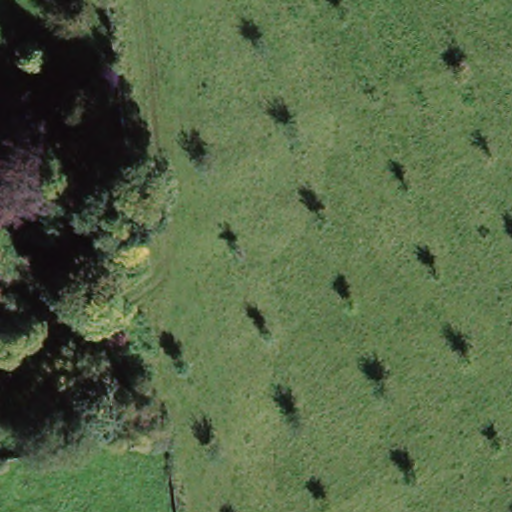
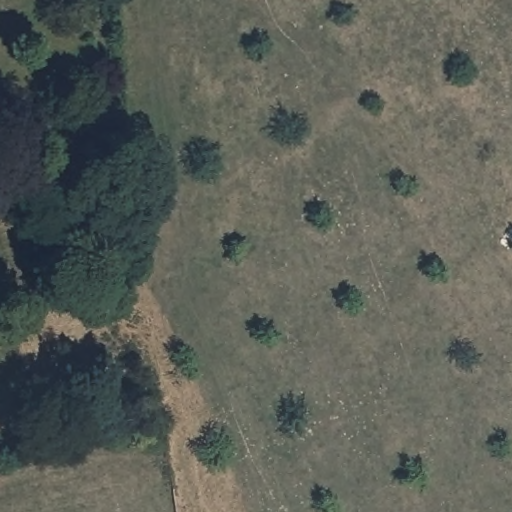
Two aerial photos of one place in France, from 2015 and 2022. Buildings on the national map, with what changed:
unchanged [(53,290),(115,277),(117,287),(61,298),(55,300),(53,290)]
unchanged [(129,447),(126,432),(161,425),(164,442),(129,447)]

